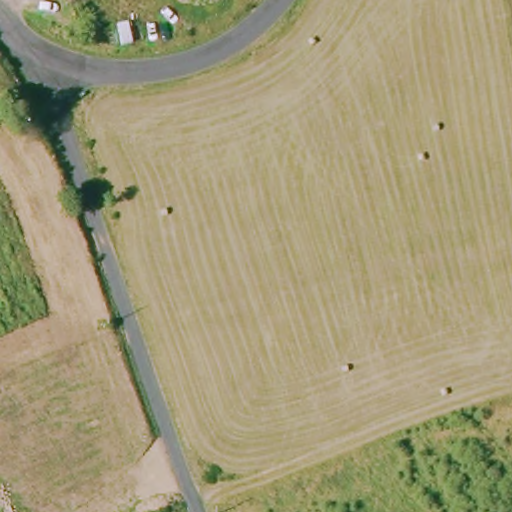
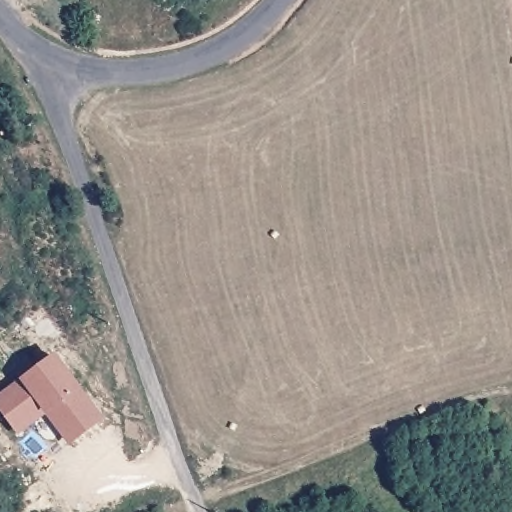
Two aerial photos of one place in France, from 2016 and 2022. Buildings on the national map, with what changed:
new [(46,414),(17,435),(0,409),(0,393),(55,353),(80,388),(102,419),(68,445),(46,414)]

